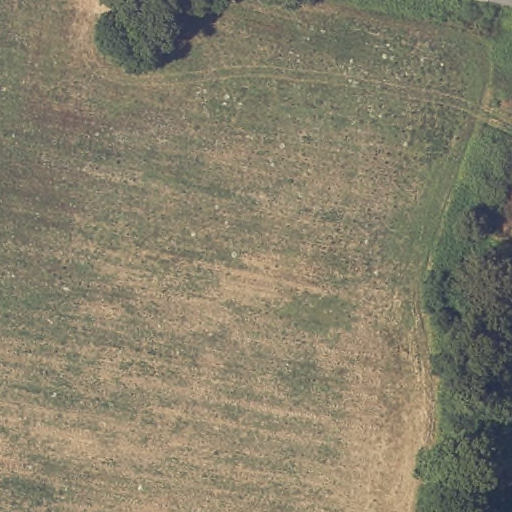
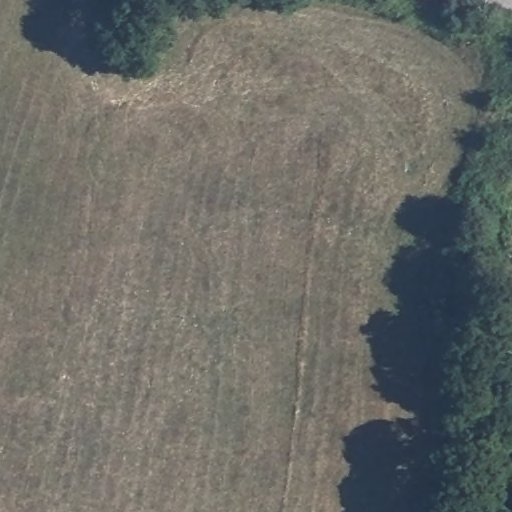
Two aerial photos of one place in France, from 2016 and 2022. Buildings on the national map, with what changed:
unchanged [(476,0),(512,0),(512,7),(476,0)]

